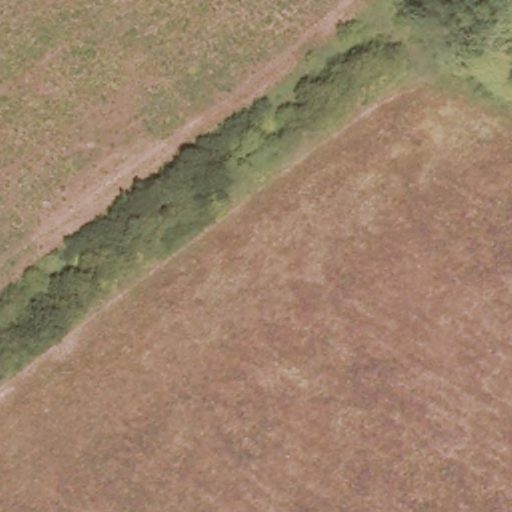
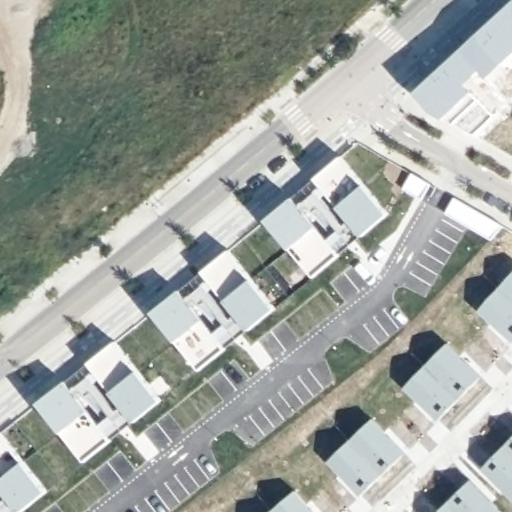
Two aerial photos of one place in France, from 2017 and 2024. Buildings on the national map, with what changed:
new [(489,77),(483,70),(468,84),(475,90),(493,114),(475,133),(455,121),(447,116),(445,118),(433,111),(415,91),(512,2),(512,56),(489,77)]
new [(365,184),(389,213),(362,234),(340,252),(342,253),(315,277),(291,249),(265,219),(293,197),(315,179),(313,178),(340,156),(365,184)]
new [(253,277),(276,307),(250,329),(248,327),(226,346),(228,348),(201,371),(178,340),(176,342),(152,312),(181,289),(230,249),(253,277)]
new [(480,310),(512,274),(512,339),(480,310)]
new [(140,369),(161,399),(135,422),(134,419),(112,438),(113,439),(86,461),(62,432),(39,402),(67,380),(116,340),(140,369)]
new [(482,375),(439,421),(404,388),(450,342),(482,375)]
new [(407,453),(362,495),(329,461),(375,418),(407,453)]
new [(49,491),(23,512),(20,510),(18,512),(0,512),(0,433),(2,432),(23,461),(49,491)]
new [(482,469),(512,437),(512,497),(482,469)]
new [(506,512),(437,512),(472,479),(506,512)]
new [(316,512),(271,512),(297,489),(316,512)]

